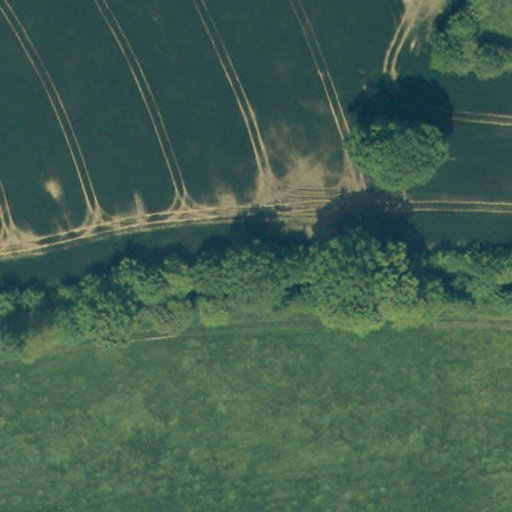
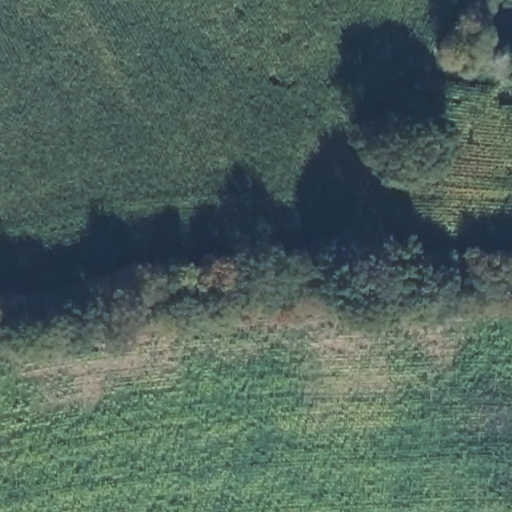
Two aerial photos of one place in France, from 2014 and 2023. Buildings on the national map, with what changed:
[]

